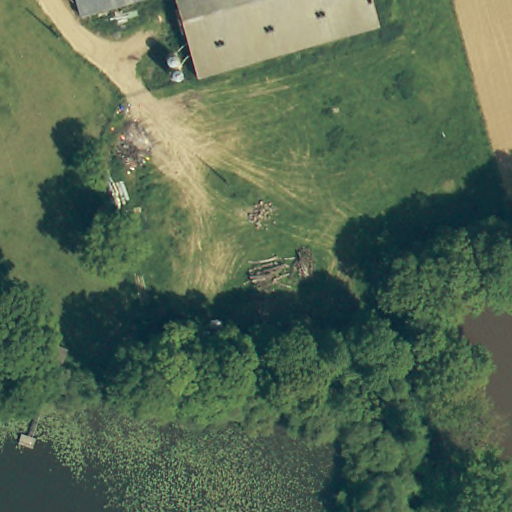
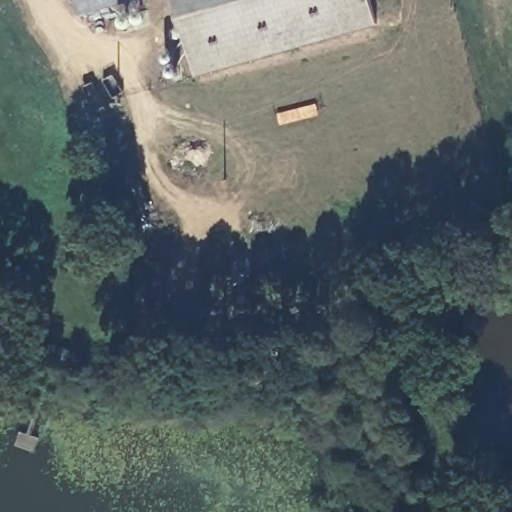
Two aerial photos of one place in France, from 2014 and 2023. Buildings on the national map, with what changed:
unchanged [(80,16),(76,0),(139,0),(80,16)]
unchanged [(379,24),(195,73),(175,0),(372,0),(379,24)]

